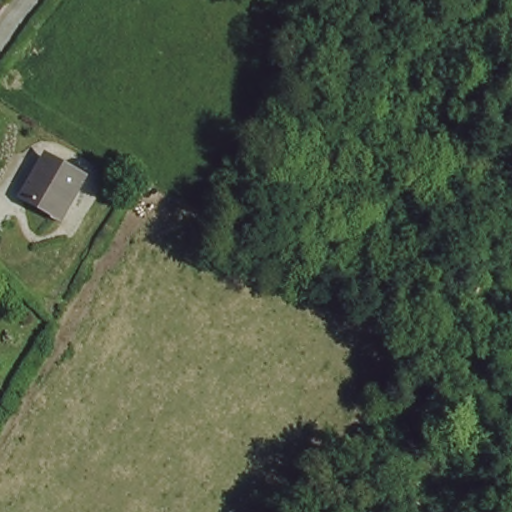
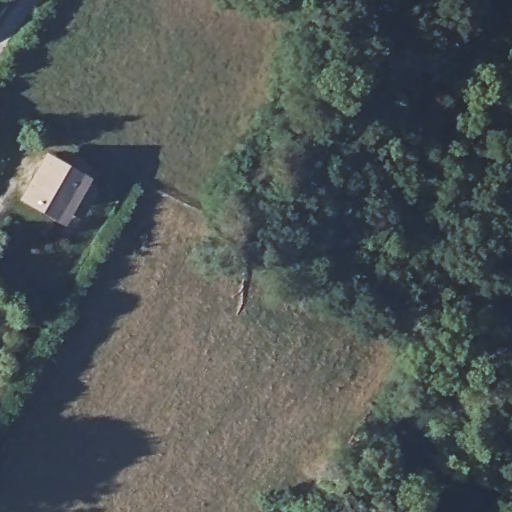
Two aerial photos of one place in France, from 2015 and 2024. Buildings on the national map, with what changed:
unchanged [(87,185),(60,229),(18,199),(40,157),(87,185)]

